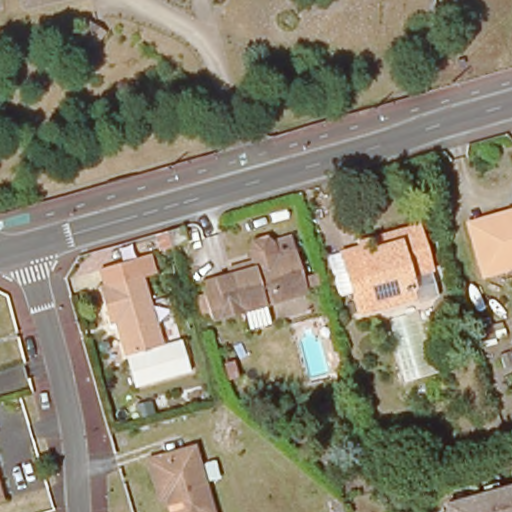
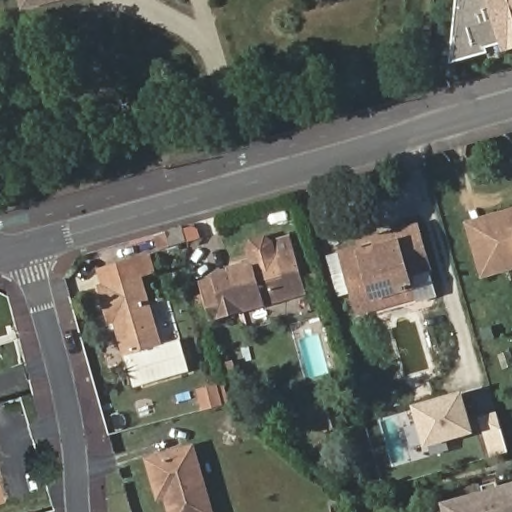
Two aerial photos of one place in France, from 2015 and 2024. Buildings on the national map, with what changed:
unchanged [(21,8),(19,0),(54,0),(21,8)]
new [(486,46),(488,52),(451,63),(458,0),(512,0),(512,50),(503,52),(500,43),(486,46)]
unchanged [(84,29),(95,35),(88,49),(76,42),(84,29)]
unchanged [(507,271),(509,277),(486,284),(481,270),(470,232),(468,226),(491,219),(512,213),(512,270),(507,271)]
unchanged [(370,315),(354,319),(337,259),(353,252),(353,249),(383,240),(412,232),(423,273),(402,280),(406,293),(409,304),(370,315)]
unchanged [(224,319),(207,323),(198,286),(226,278),(225,273),(248,267),(273,261),(271,252),(291,248),(294,255),(305,298),(224,319)]
unchanged [(97,288),(103,286),(98,268),(147,255),(151,271),(151,272),(138,276),(157,345),(178,338),(187,370),(132,386),(124,356),(114,320),(106,321),(97,288)]
unchanged [(230,365),(235,381),(225,384),(220,368),(230,365)]
unchanged [(336,397),(345,425),(322,431),(314,404),(336,397)]
new [(457,398),(468,435),(423,447),(412,410),(457,398)]
new [(494,416),(504,454),(500,457),(488,460),(477,421),(494,416)]
unchanged [(143,461),(188,450),(206,512),(167,512),(163,500),(154,503),(152,494),(143,461)]
unchanged [(512,483),(512,512),(446,512),(443,502),(512,483)]

